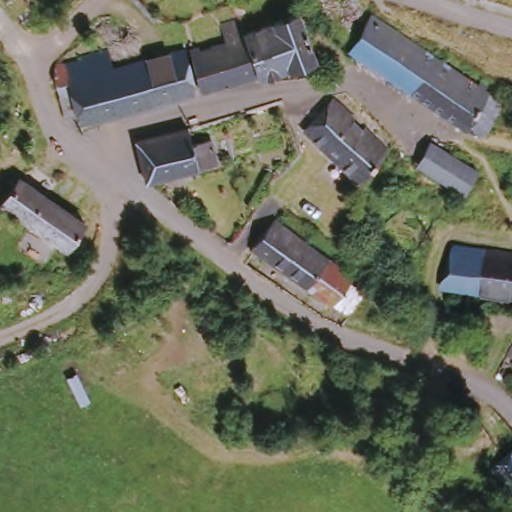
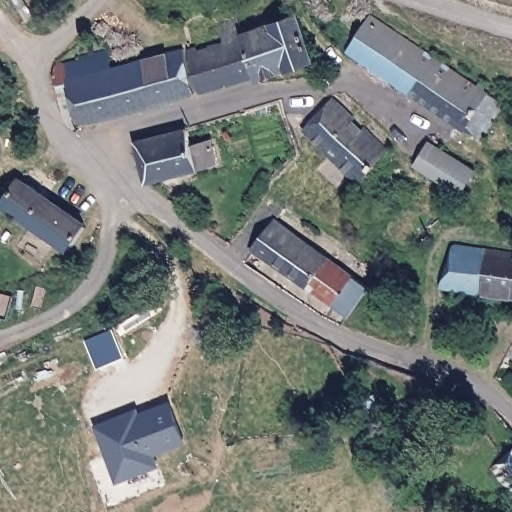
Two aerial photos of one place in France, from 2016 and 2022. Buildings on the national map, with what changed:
unchanged [(264,80),(248,35),(302,18),(317,61),(264,80)]
unchanged [(248,35),(264,80),(248,85),(232,46),(227,28),(243,22),(248,35)]
unchanged [(500,104),(479,137),(460,129),(407,94),(347,51),(370,22),(419,51),(500,104)]
unchanged [(207,96),(195,57),(232,46),(248,85),(207,96)]
unchanged [(79,128),(71,121),(66,101),(77,98),(74,87),(62,88),(59,79),(65,69),(87,65),(87,60),(112,52),(116,71),(155,61),(191,53),(203,96),(79,128)]
unchanged [(367,184),(314,132),(344,99),(398,150),(367,184)]
unchanged [(147,185),(137,145),(188,133),(193,155),(217,150),(220,169),(147,185)]
unchanged [(483,172),(468,195),(422,166),(427,159),(437,141),(445,147),(483,172)]
unchanged [(65,257),(7,206),(27,182),(37,191),(62,212),(87,234),(65,257)]
unchanged [(347,320),(255,254),(279,224),(370,289),(347,320)]
unchanged [(445,292),(457,253),(512,259),(512,301),(445,292)]
new [(95,425),(138,407),(140,412),(171,400),(187,443),(158,453),(162,465),(117,482),(95,425)]
unchanged [(499,470),(512,459),(512,485),(499,470)]

